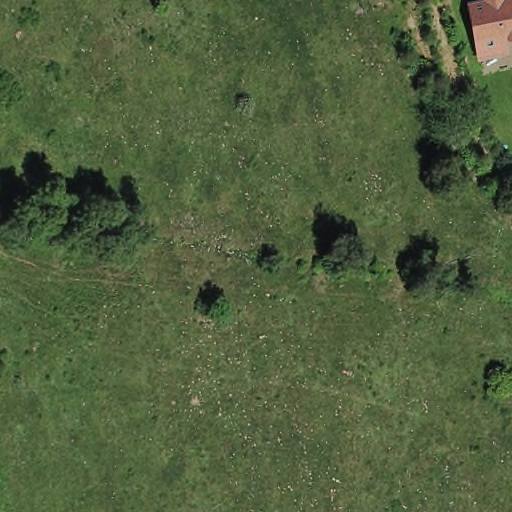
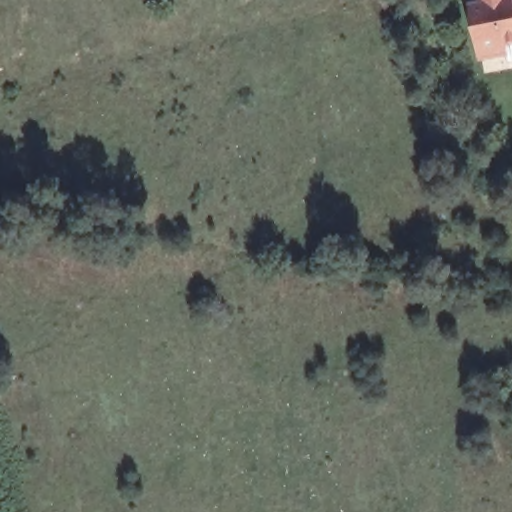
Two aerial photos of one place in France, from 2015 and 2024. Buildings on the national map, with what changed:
unchanged [(490,9),(488,0),(512,0),(512,49),(511,49),(512,55),(512,59),(488,63),(478,11),(490,9)]

